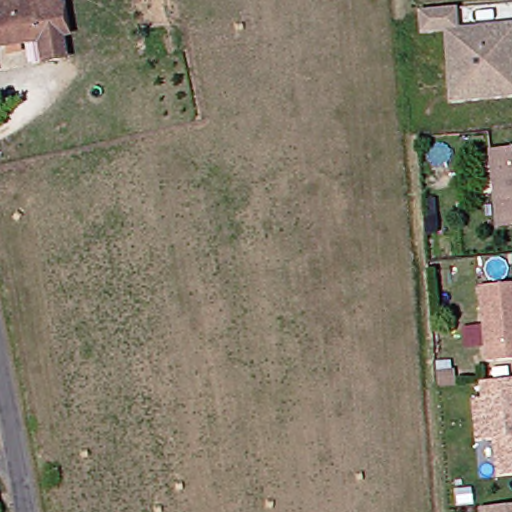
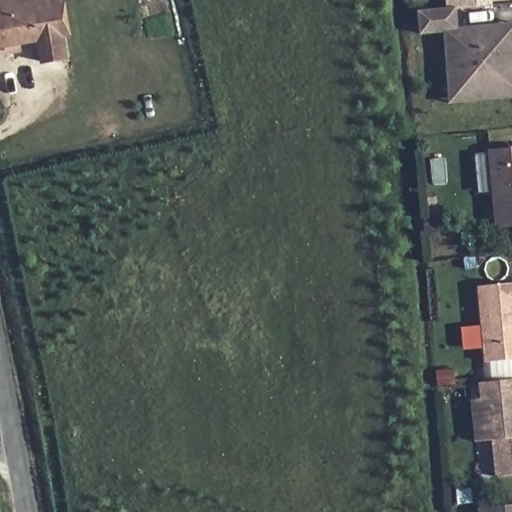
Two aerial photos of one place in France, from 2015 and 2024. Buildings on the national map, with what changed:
unchanged [(48,42),(0,50),(0,0),(64,0),(64,5),(74,59),(52,62),(48,42)]
unchanged [(439,32),(416,34),(414,12),(450,8),(451,8),(453,29),(497,25),(512,24),(512,96),(460,102),(447,103),(443,64),(439,32)]
unchanged [(1,72),(0,72),(0,67),(1,72)]
unchanged [(512,227),(498,229),(490,151),(512,149),(512,227)]
unchanged [(512,284),(512,359),(486,362),(479,287),(512,284)]
unchanged [(512,475),(496,477),(492,440),(475,442),(471,400),(480,398),(479,383),(500,381),(512,379),(512,475)]
unchanged [(59,477),(48,478),(47,472),(58,470),(59,477)]
unchanged [(479,508),(512,505),(512,512),(480,512),(479,508)]

